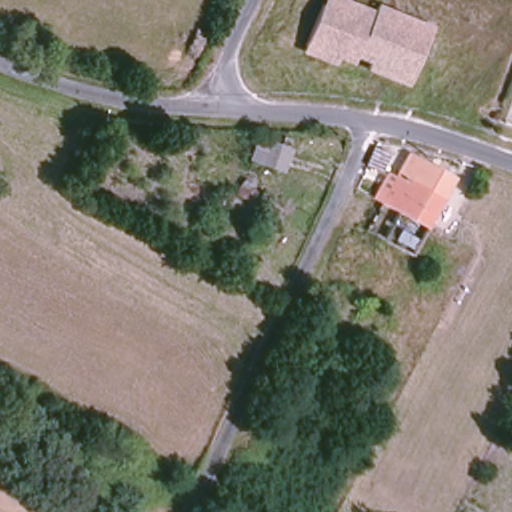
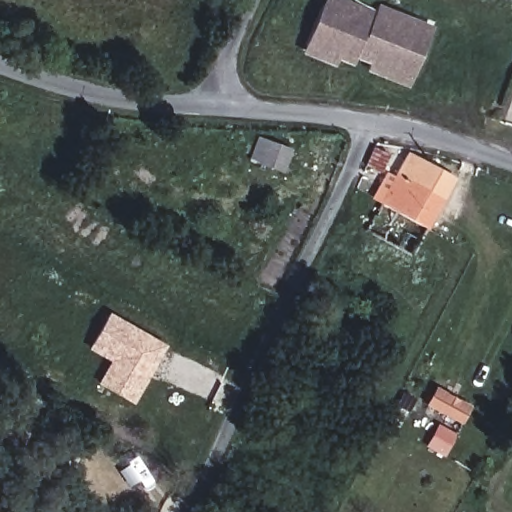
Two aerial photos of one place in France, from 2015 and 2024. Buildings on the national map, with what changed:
unchanged [(392,11),(390,19),(427,32),(412,76),(387,69),(386,73),(367,66),(370,59),(356,55),(355,61),(338,56),(336,62),(320,57),(321,52),(303,46),(318,5),(352,16),(354,6),(371,11),(373,5),(392,11)]
unchanged [(266,163),(255,192),(237,182),(254,137),(291,146),(286,167),(266,163)]
unchanged [(383,174),(365,165),(375,144),(392,151),(383,174)]
unchanged [(456,177),(424,230),(381,205),(391,190),(380,182),(386,171),(398,177),(412,150),(456,177)]
new [(135,405),(100,385),(112,362),(89,349),(110,313),(167,346),(135,405)]
unchanged [(76,465),(41,445),(54,420),(87,439),(76,465)]

